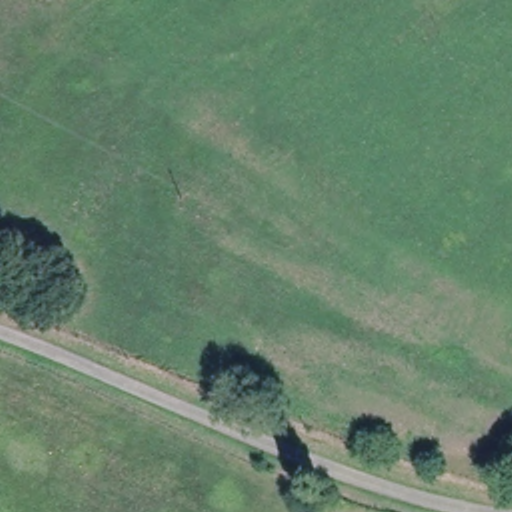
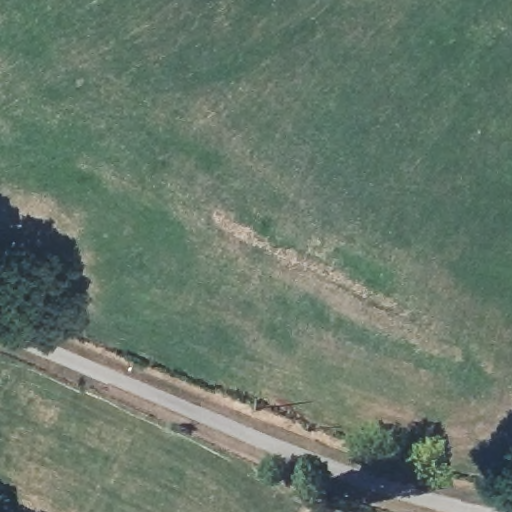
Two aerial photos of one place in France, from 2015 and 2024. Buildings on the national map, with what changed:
[]

